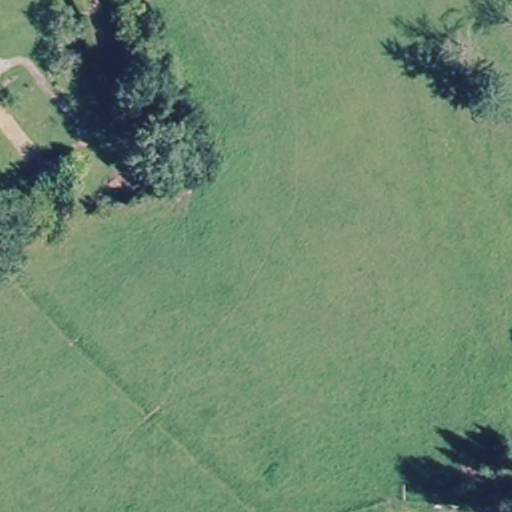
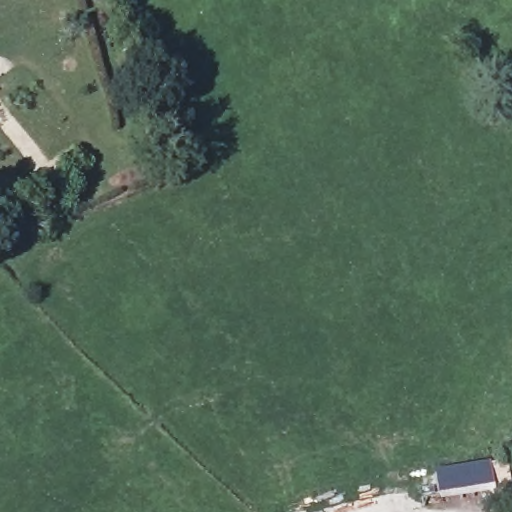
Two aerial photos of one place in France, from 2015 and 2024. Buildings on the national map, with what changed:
new [(490,462),(494,486),(439,495),(435,468),(490,462)]

